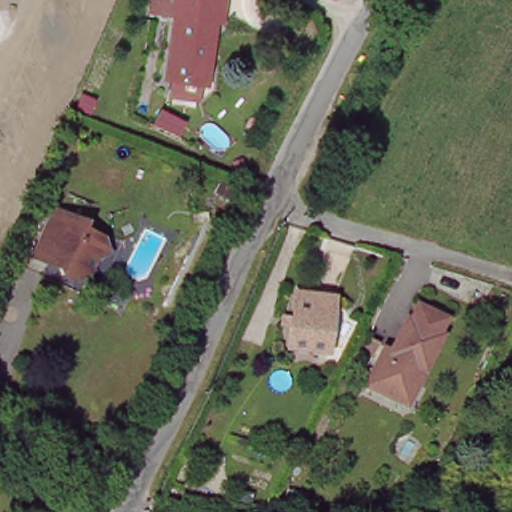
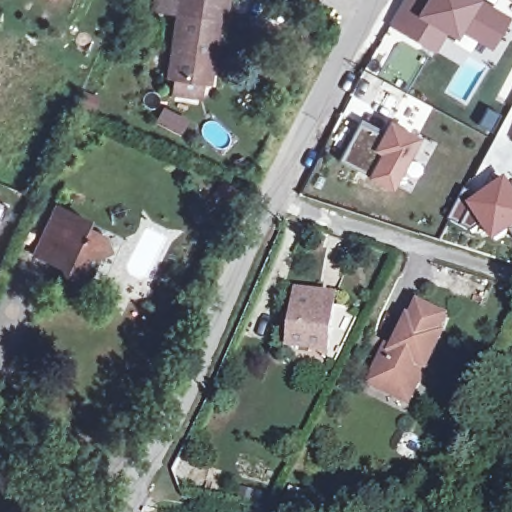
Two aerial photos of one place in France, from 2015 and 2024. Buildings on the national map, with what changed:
unchanged [(176,74),(170,74),(178,10),(166,9),(165,11),(152,9),(154,0),(227,0),(225,16),(219,16),(210,79),(204,78),(201,93),(173,89),(176,74)]
new [(427,0),(428,1),(429,0),(473,0),(506,19),(490,47),(459,29),(455,36),(445,30),(433,50),(390,25),(405,0),(427,0)]
new [(387,141),(393,129),(421,144),(395,194),(343,167),(363,129),(387,141)]
new [(478,200),(507,182),(512,188),(512,237),(511,236),(493,247),(482,229),(472,234),(448,222),(465,192),(478,200)]
unchanged [(93,252),(86,269),(76,265),(72,275),(60,270),(55,255),(50,253),(46,259),(31,251),(52,203),(84,218),(81,224),(100,233),(105,247),(93,252)]
unchanged [(336,297),(330,352),(291,348),(293,327),(283,326),(285,315),(295,317),(298,293),(336,297)]
unchanged [(370,379),(383,352),(387,344),(393,348),(410,314),(412,315),(420,301),(441,312),(447,314),(440,329),(443,331),(420,379),(410,399),(402,396),(370,379)]

